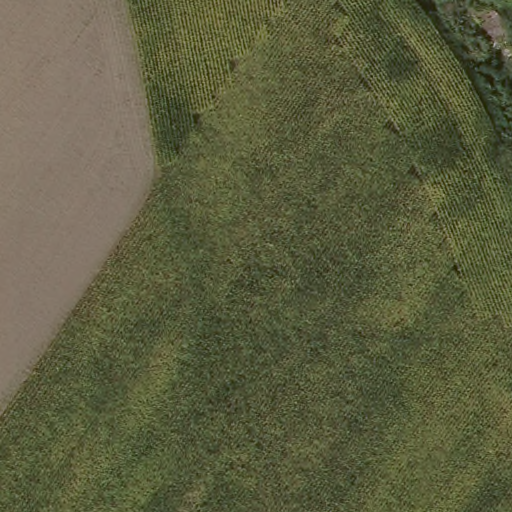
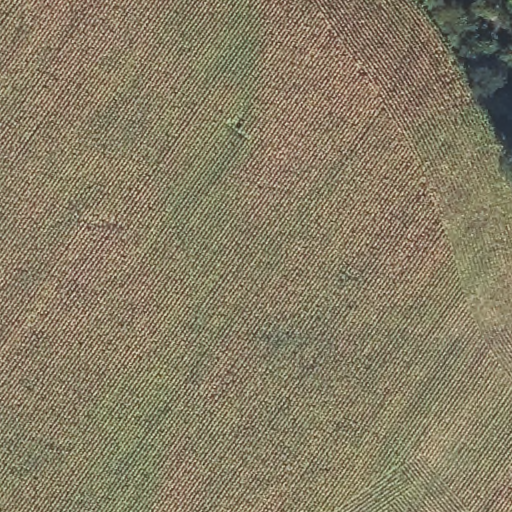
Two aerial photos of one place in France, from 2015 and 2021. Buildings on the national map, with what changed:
unchanged [(496,0),(512,19),(512,31),(497,43),(468,7),(478,0),(496,0)]

